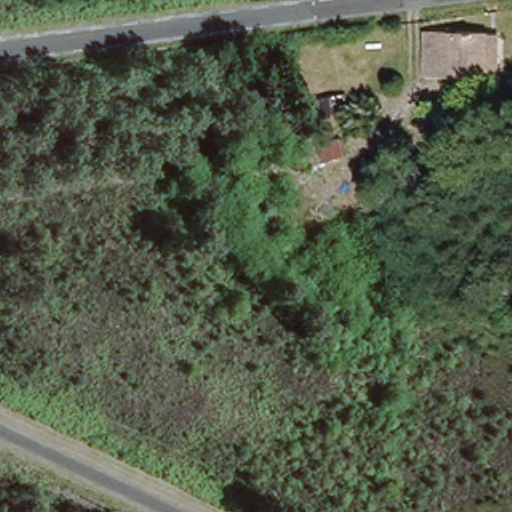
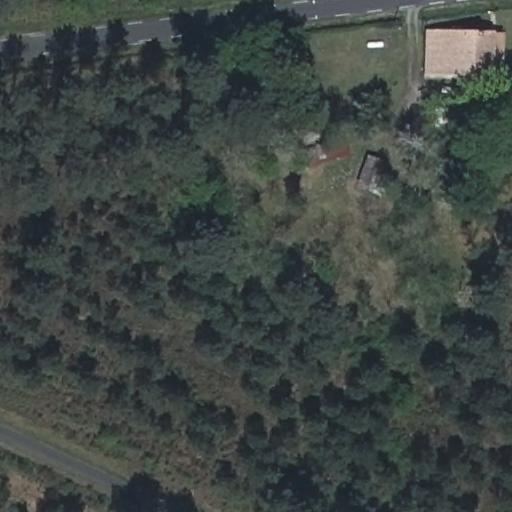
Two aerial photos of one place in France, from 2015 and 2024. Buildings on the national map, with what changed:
unchanged [(420,66),(420,58),(420,45),(433,45),(433,30),(458,31),(485,31),(484,64),(484,73),(460,72),(420,71),(420,66)]

